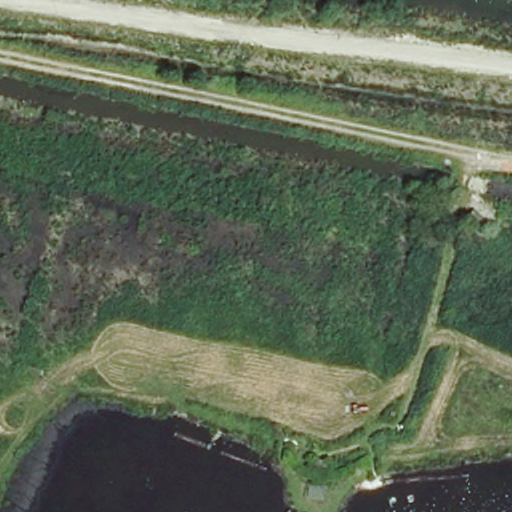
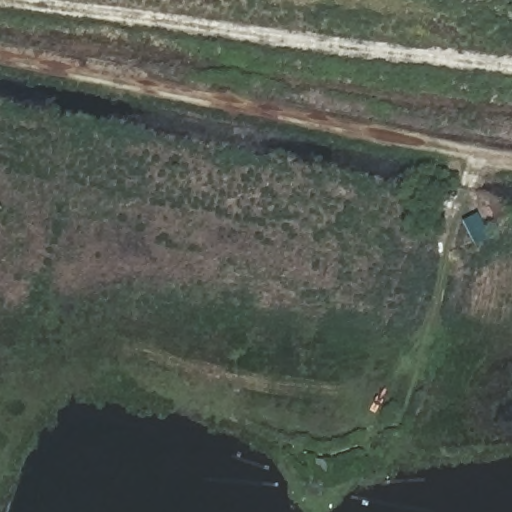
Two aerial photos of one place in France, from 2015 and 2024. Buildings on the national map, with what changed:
unchanged [(323,486),(322,501),(299,500),(300,485),(323,486)]

